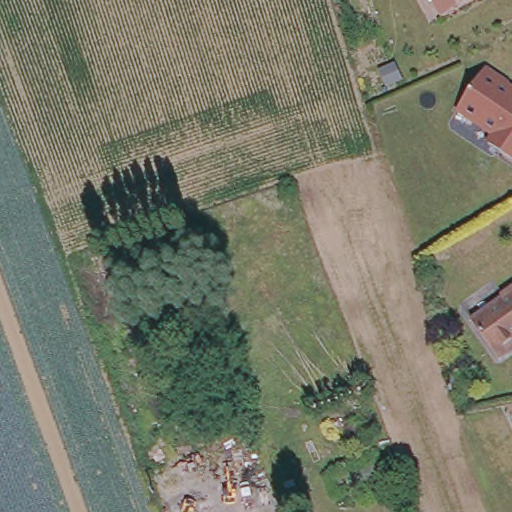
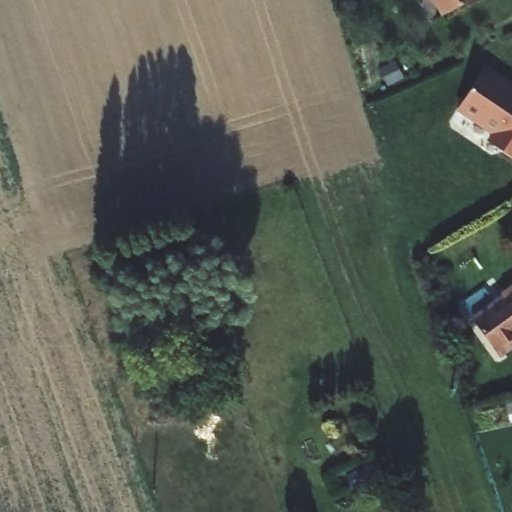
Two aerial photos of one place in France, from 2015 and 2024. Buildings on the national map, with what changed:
unchanged [(423,0),(468,0),(434,20),(423,0)]
unchanged [(509,86),(506,92),(512,95),(512,161),(491,147),(496,137),(459,112),(487,71),(509,86)]
unchanged [(504,297),(502,294),(512,287),(512,348),(504,354),(476,317),(504,297)]
unchanged [(349,490),(342,473),(373,461),(379,477),(349,490)]

